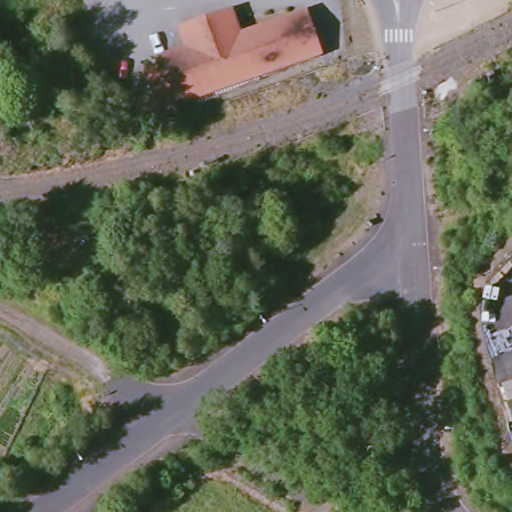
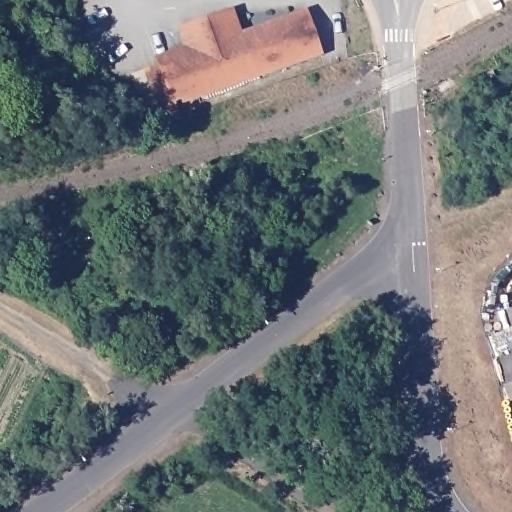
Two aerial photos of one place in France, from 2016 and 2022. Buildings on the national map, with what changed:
unchanged [(163,62),(161,55),(190,44),(185,29),(201,23),(199,19),(218,11),(220,16),(236,10),(243,29),(308,4),(325,46),(189,98),(187,94),(179,97),(185,113),(174,117),(169,104),(165,106),(160,93),(150,68),(163,62)]
unchanged [(160,114),(157,116),(155,109),(160,114)]

